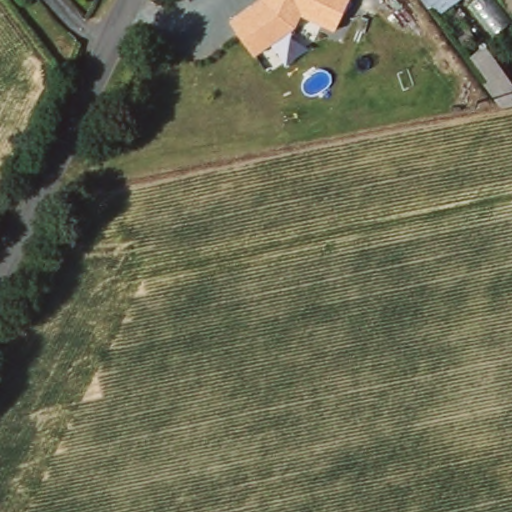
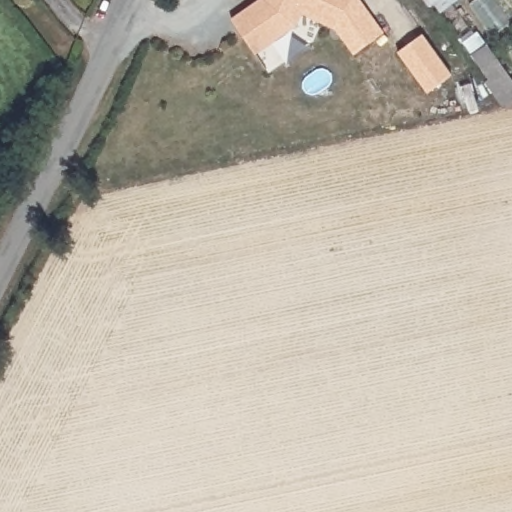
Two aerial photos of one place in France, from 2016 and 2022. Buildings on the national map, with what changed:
unchanged [(295,28),(255,56),(230,19),(258,0),(348,0),(335,30),(301,14),(295,28)]
unchanged [(451,0),(427,15),(418,0),(451,0)]
new [(396,53),(422,33),(452,74),(426,94),(396,53)]
unchanged [(465,55),(483,39),(512,80),(512,103),(501,106),(465,55)]

